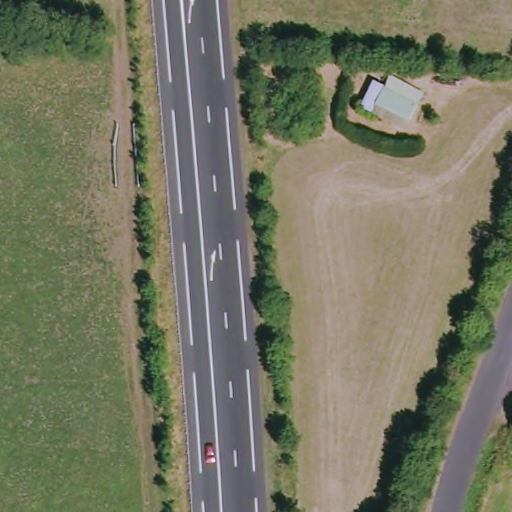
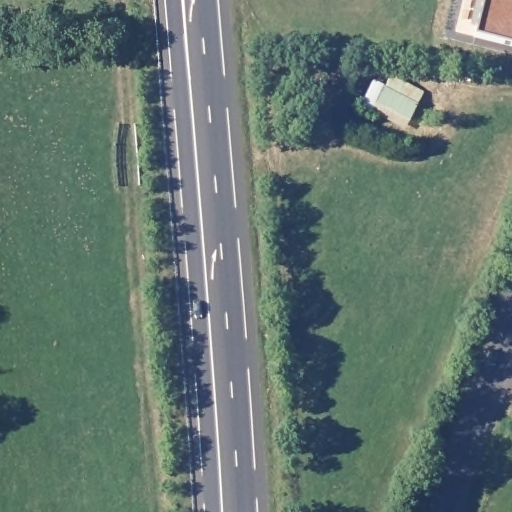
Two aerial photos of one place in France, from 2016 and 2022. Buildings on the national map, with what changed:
new [(480,0),(512,0),(512,41),(472,30),(480,0)]
unchanged [(370,79),(383,84),(389,71),(419,88),(400,130),(356,110),(370,79)]

